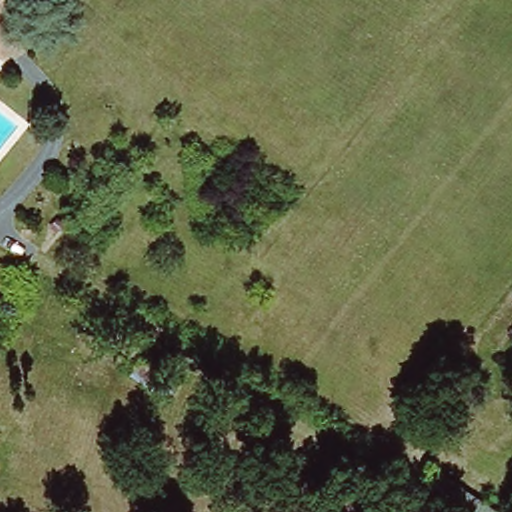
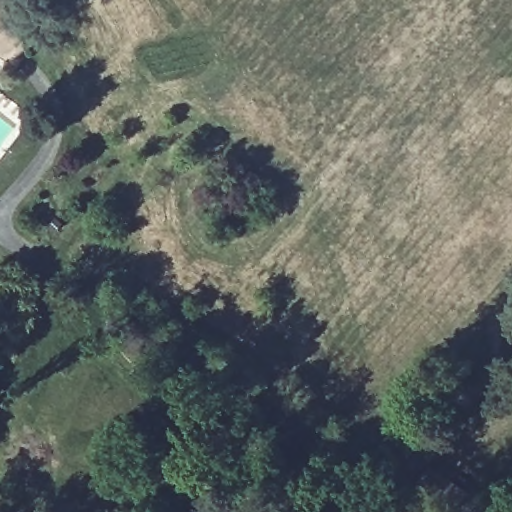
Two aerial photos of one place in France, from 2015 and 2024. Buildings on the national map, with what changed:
[]

